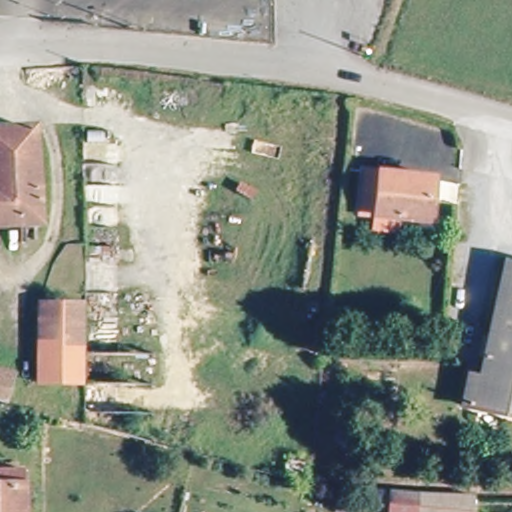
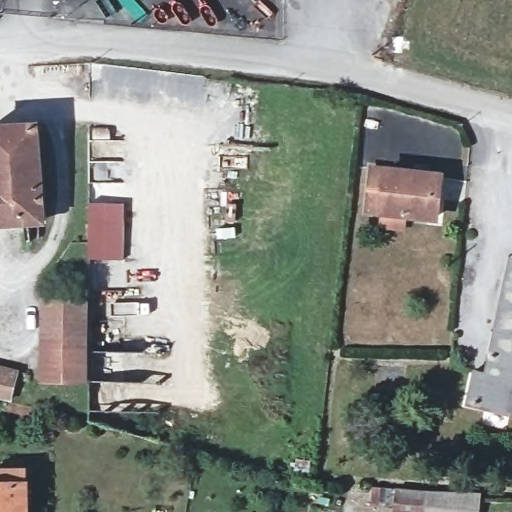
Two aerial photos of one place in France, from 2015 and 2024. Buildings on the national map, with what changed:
unchanged [(38,125),(44,220),(0,220),(0,126),(38,125)]
unchanged [(441,170),(435,223),(366,216),(370,165),(441,170)]
new [(88,258),(88,222),(122,221),(122,257),(88,258)]
unchanged [(477,367),(494,369),(512,269),(512,417),(469,409),(477,367)]
unchanged [(89,383),(48,384),(42,308),(88,305),(89,383)]
unchanged [(16,380),(11,405),(0,401),(0,374),(16,380)]
unchanged [(26,468),(25,512),(0,512),(0,468),(26,468)]
unchanged [(435,512),(397,512),(401,490),(436,491),(435,512)]
unchanged [(435,512),(436,491),(486,495),(486,512),(435,512)]

